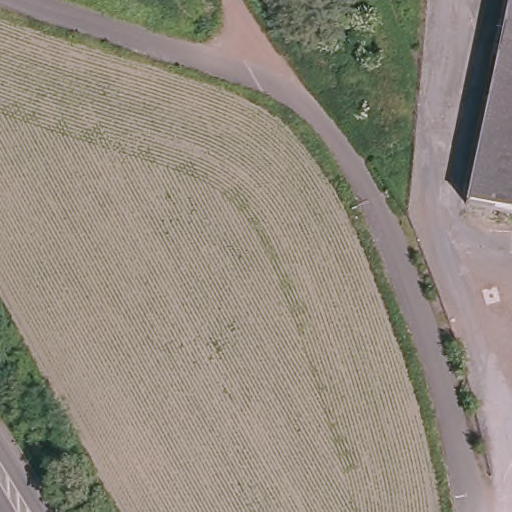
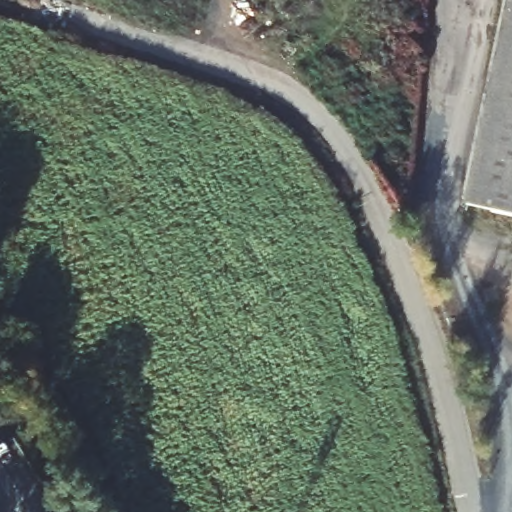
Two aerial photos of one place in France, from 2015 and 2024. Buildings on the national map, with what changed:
unchanged [(499,204),(469,197),(511,0),(512,0),(512,213),(498,210),(499,204)]

